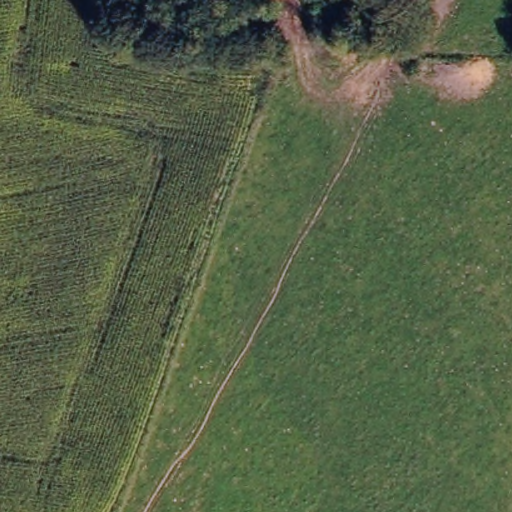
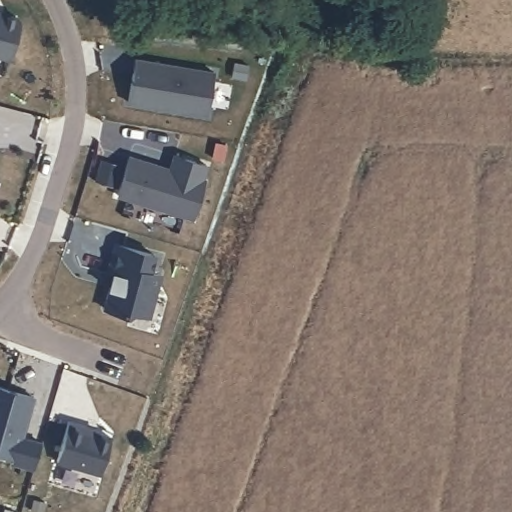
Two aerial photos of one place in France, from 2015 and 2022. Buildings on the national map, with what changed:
new [(9,60),(0,57),(0,9),(21,15),(9,60)]
new [(215,70),(207,112),(128,100),(135,56),(215,70)]
new [(171,166),(175,152),(207,162),(202,176),(206,177),(193,215),(118,194),(131,155),(171,166)]
new [(155,254),(150,271),(159,273),(148,314),(128,310),(127,313),(107,307),(112,287),(110,286),(114,271),(110,270),(118,244),(155,254)]
new [(24,436),(42,441),(34,470),(10,465),(11,458),(0,455),(0,386),(35,396),(24,436)]
new [(97,428),(96,433),(112,437),(100,475),(55,461),(68,420),(97,428)]

